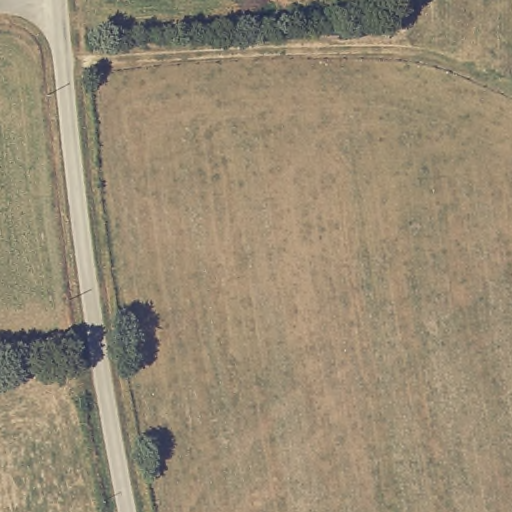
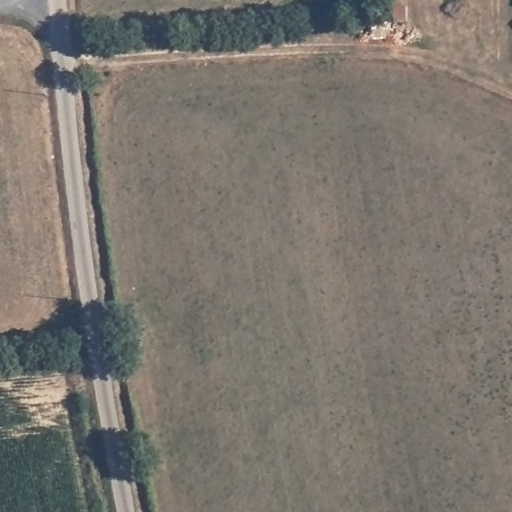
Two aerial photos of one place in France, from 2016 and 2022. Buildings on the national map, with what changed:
unchanged [(405,7),(404,23),(393,22),(393,19),(392,7),(405,7)]

